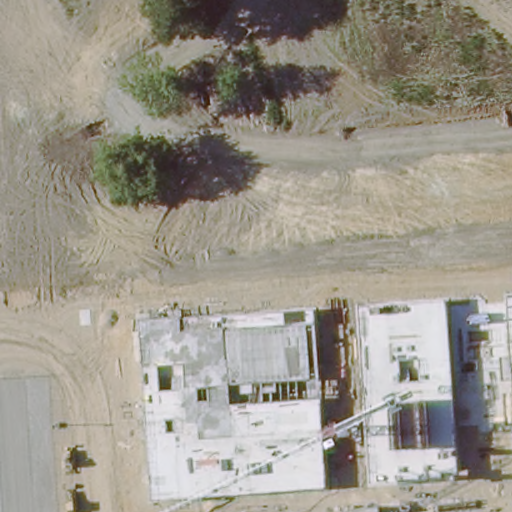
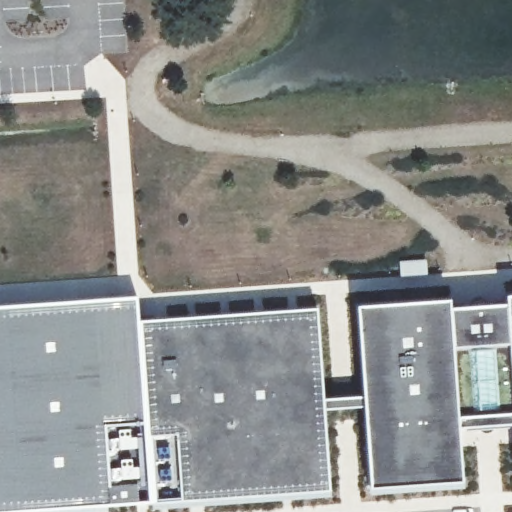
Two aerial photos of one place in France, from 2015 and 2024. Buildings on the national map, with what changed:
demolished [(260,172),(226,183),(204,114),(238,104),(260,172)]
new [(145,322),(297,312),(306,398),(346,392),(341,306),(434,297),(434,307),(490,304),(490,293),(512,291),(512,481),(505,481),(501,432),(446,437),(451,487),(353,495),(349,413),(309,415),(312,501),(169,512),(0,512),(0,311),(144,299),(145,322)]
demolished [(41,442),(43,480),(0,483),(0,445),(41,442)]

